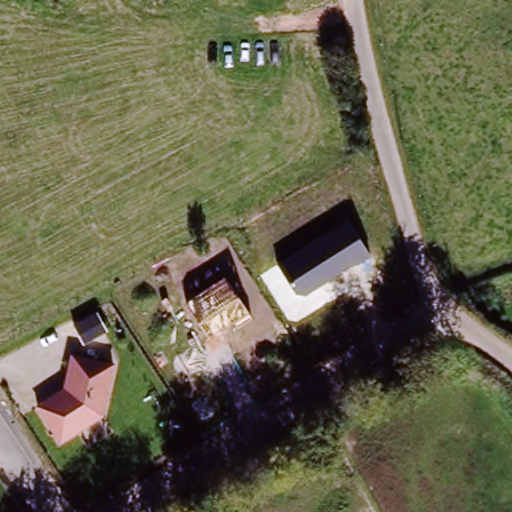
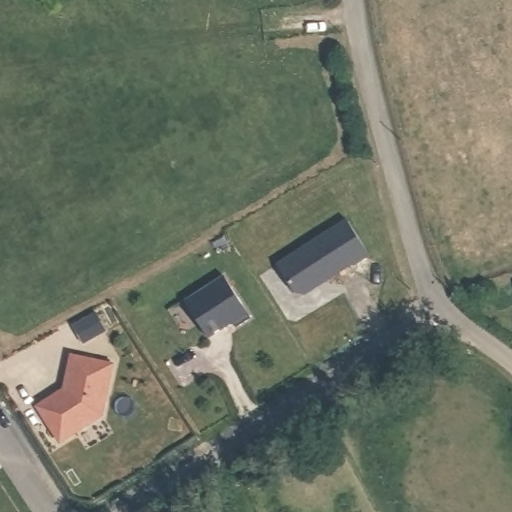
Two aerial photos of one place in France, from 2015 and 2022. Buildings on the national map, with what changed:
unchanged [(278,264),(347,217),(370,252),(304,295),(278,264)]
new [(253,318),(237,329),(234,323),(209,339),(185,301),(224,275),(253,318)]
unchanged [(114,362),(105,411),(62,438),(38,404),(67,386),(71,352),(114,362)]

